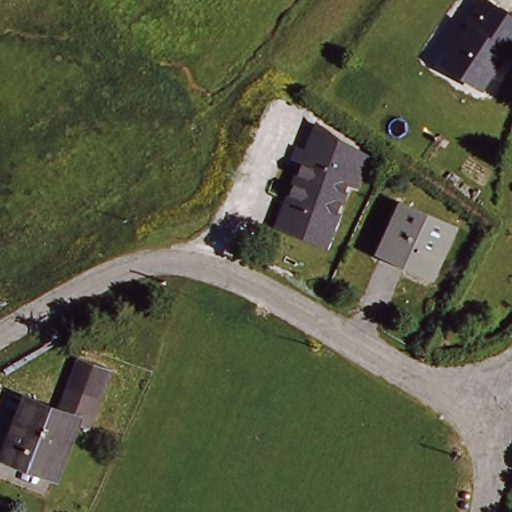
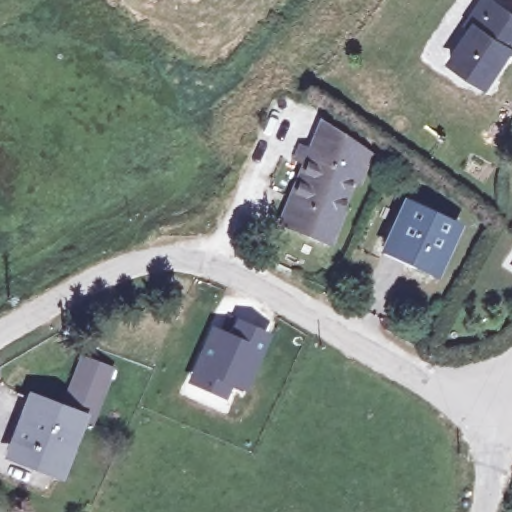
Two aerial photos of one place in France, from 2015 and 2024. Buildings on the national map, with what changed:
unchanged [(512,68),(495,89),(447,61),(488,0),(495,0),(512,11),(512,68)]
unchanged [(358,183),(349,179),(336,210),(342,213),(333,239),(285,223),(309,160),(297,156),(301,145),(313,149),(325,118),(370,151),(363,170),(358,183)]
unchanged [(389,255),(392,246),(412,199),(465,222),(445,268),(441,278),(389,255)]
new [(240,342),(247,327),(265,335),(240,390),(228,385),(224,395),(190,381),(212,330),(240,342)]
unchanged [(35,396),(66,408),(90,353),(118,363),(95,420),(81,414),(60,469),(42,463),(37,473),(6,460),(35,396)]

